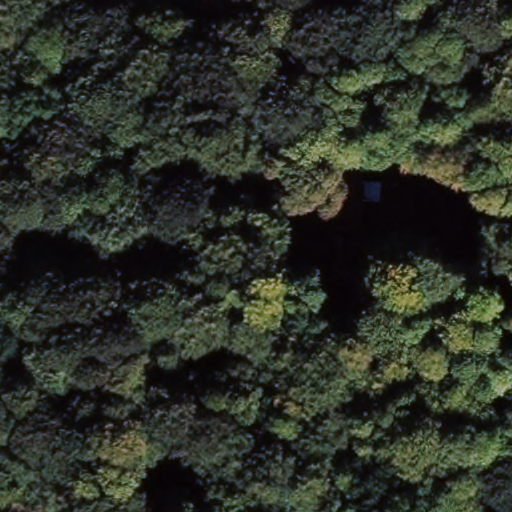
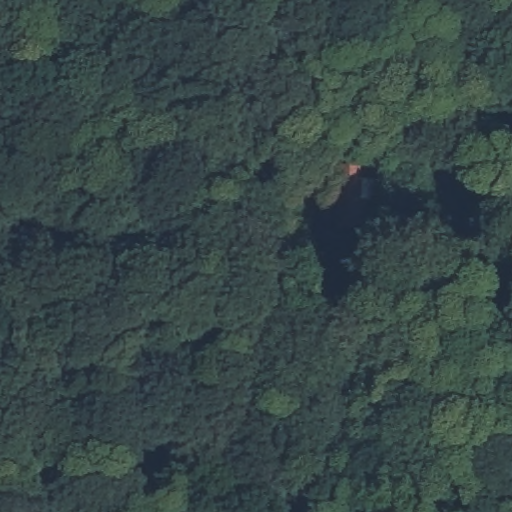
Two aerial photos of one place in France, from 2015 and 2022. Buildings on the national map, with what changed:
unchanged [(341,195),(340,178),(356,177),(356,192),(357,207),(363,207),(364,232),(343,232),(341,195)]

